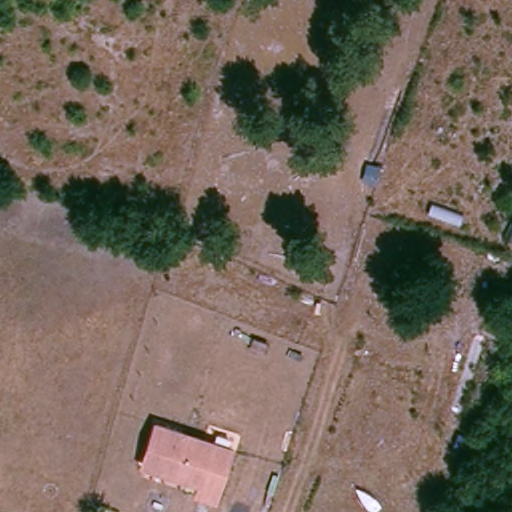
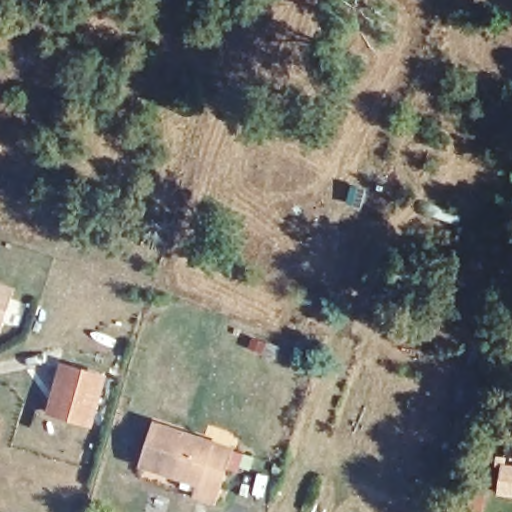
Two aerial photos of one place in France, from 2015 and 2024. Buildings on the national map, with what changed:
new [(2,334),(0,333),(0,282),(15,288),(2,334)]
new [(107,376),(93,429),(45,414),(62,362),(107,376)]
unchanged [(230,451),(212,502),(196,496),(199,485),(142,465),(156,425),(230,451)]

